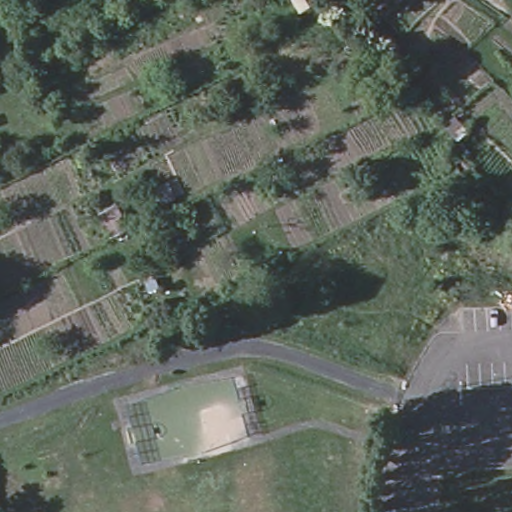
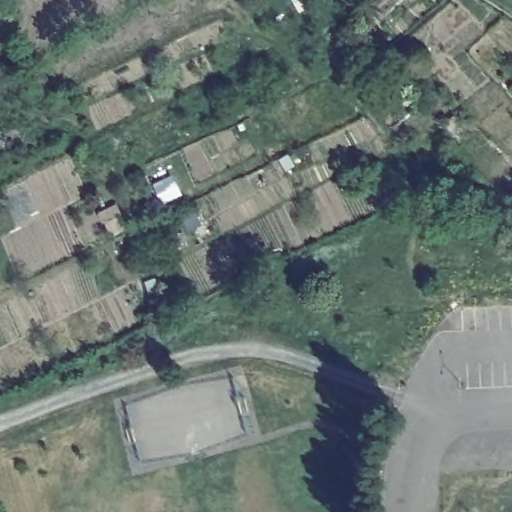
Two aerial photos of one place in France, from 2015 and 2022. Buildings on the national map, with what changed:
[]

